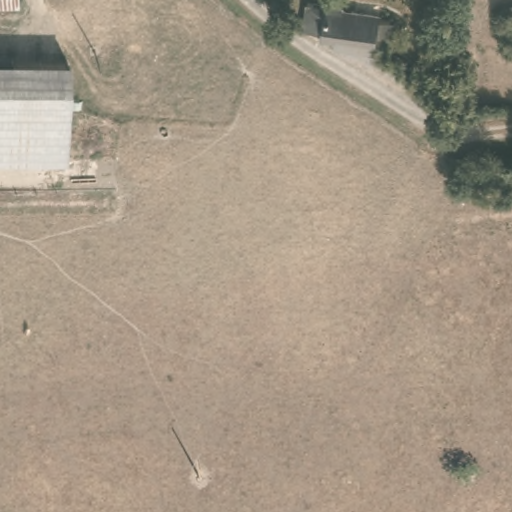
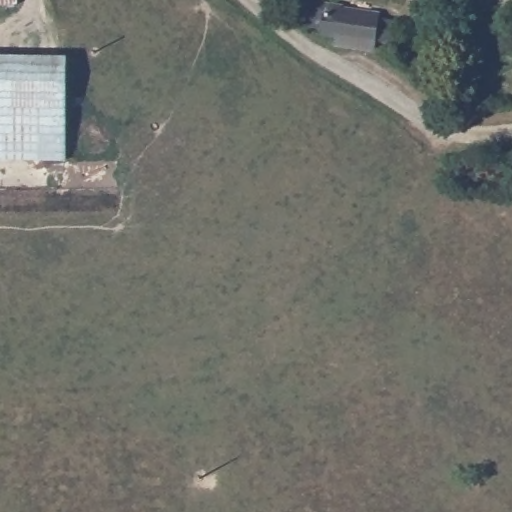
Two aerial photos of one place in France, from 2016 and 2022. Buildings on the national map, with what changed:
unchanged [(350,10),(350,13),(385,20),(379,55),(338,47),(339,40),(330,38),(326,37),(327,34),(327,31),(323,30),(311,28),(313,20),(316,4),(350,10)]
unchanged [(70,62),(67,161),(0,161),(0,62),(70,62)]

